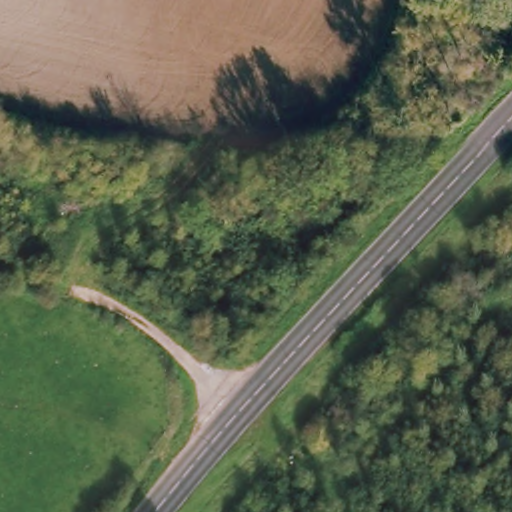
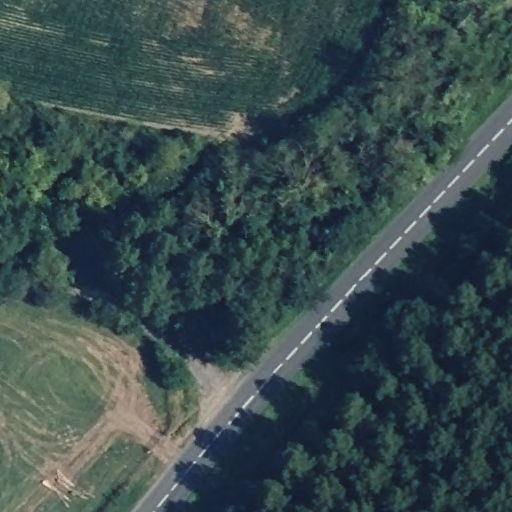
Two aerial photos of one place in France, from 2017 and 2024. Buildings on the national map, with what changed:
unchanged [(53,191),(43,223),(4,213),(14,180),(53,191)]

